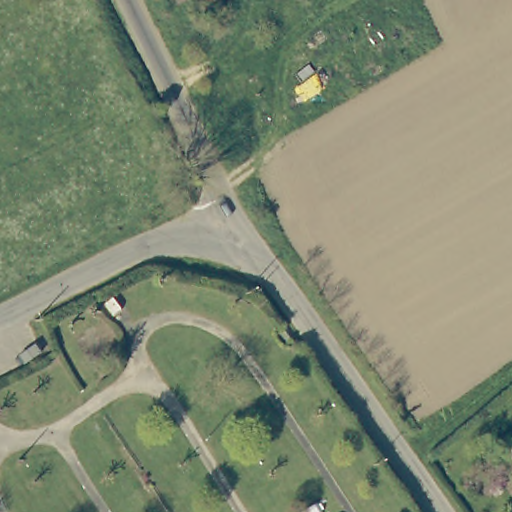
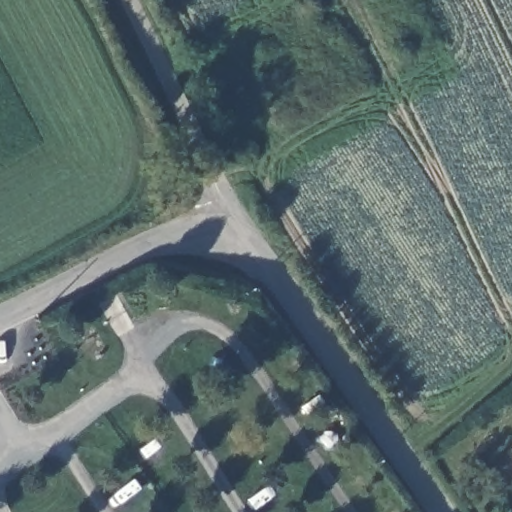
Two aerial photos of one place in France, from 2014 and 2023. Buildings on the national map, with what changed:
[]

